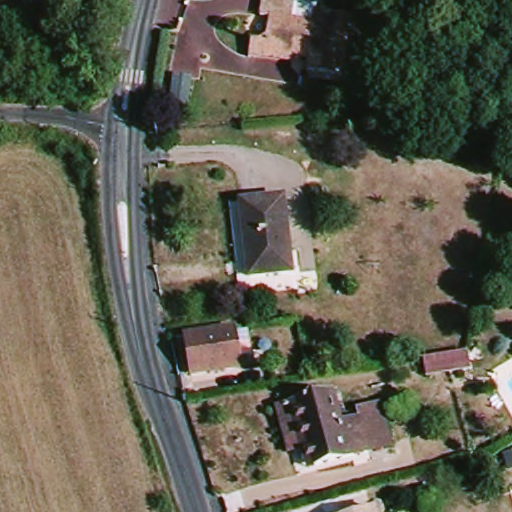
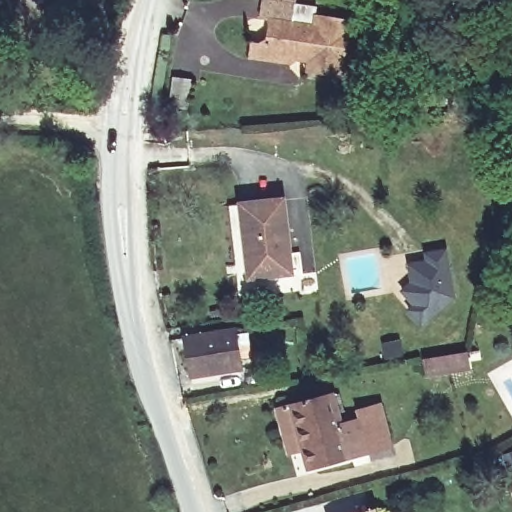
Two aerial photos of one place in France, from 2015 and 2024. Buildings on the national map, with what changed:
unchanged [(250,46),(265,47),(268,24),(259,23),(262,3),(295,7),(292,26),(313,29),(314,21),(351,26),(343,81),(306,76),(307,69),(248,61),(250,46)]
unchanged [(249,282),(240,204),(294,198),(299,240),(291,240),(294,257),(301,255),(302,278),(249,282)]
new [(412,279),(409,262),(427,258),(426,251),(445,247),(454,294),(422,322),(409,307),(415,302),(402,287),(412,279)]
unchanged [(192,381),(183,338),(234,330),(242,371),(192,381)]
unchanged [(438,375),(437,358),(463,356),(464,372),(438,375)]
unchanged [(306,477),(301,458),(291,462),(287,462),(274,415),(289,411),(334,399),(343,428),(361,424),(361,422),(371,457),(371,458),(306,477)]
unchanged [(361,422),(360,415),(383,410),(394,452),(371,457),(361,422)]
unchanged [(370,512),(366,512),(370,511),(370,512)]

